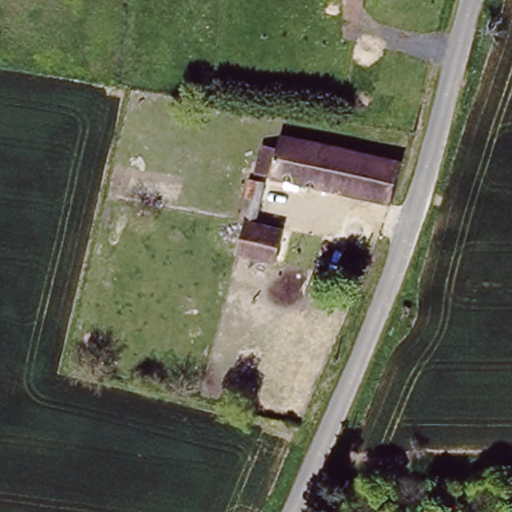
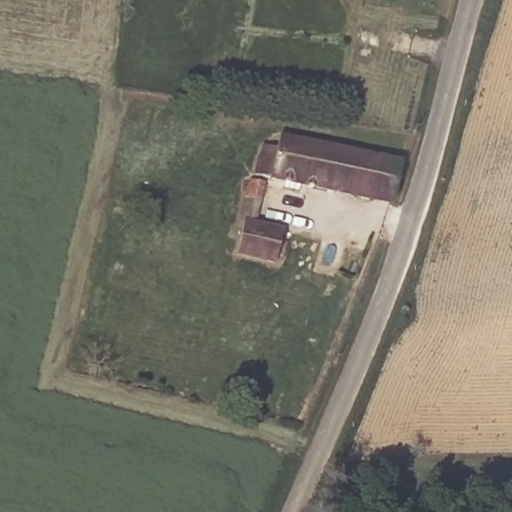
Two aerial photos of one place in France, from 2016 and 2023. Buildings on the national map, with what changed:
unchanged [(267,175),(271,155),(276,156),(279,140),(291,142),(292,136),(391,157),(380,197),(314,184),(298,181),(267,175)]
unchanged [(245,222),(241,222),(244,198),(262,200),(257,227),(280,231),(274,261),(238,253),(245,222)]

